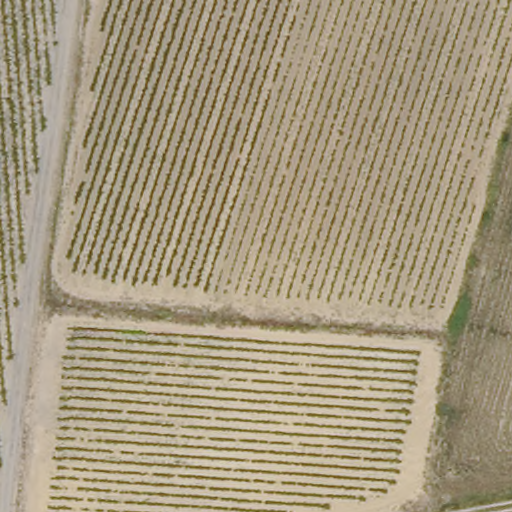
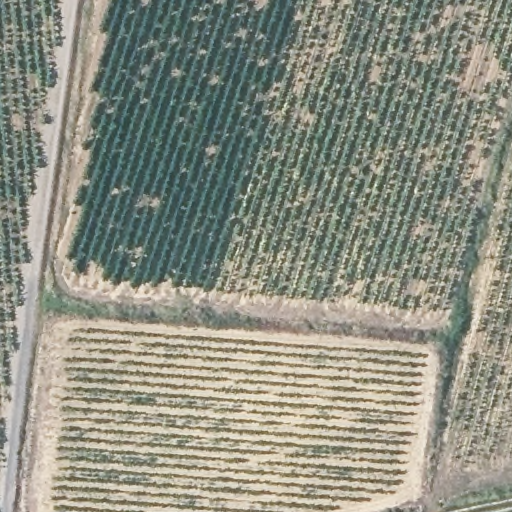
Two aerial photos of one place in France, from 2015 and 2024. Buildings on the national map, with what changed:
[]

